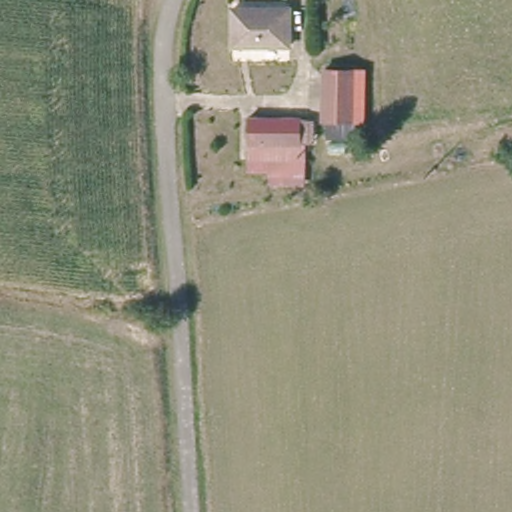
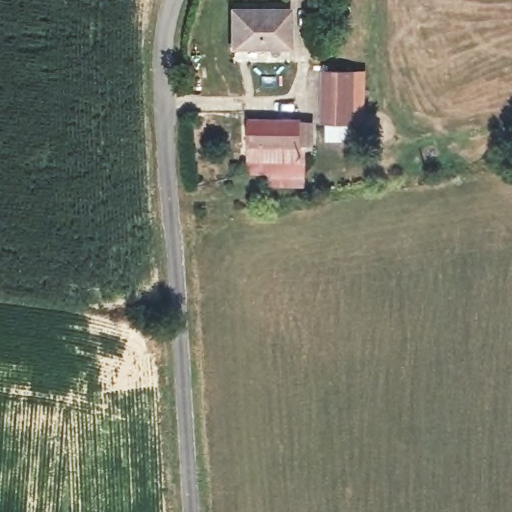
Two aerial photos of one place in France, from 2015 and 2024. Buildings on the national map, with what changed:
unchanged [(284,44),(227,45),(227,10),(283,8),(284,44)]
unchanged [(322,123),(326,66),(357,67),(355,121),(322,123)]
unchanged [(355,121),(357,67),(366,67),(362,125),(361,141),(326,139),(326,123),(355,121)]
unchanged [(253,153),(252,120),(293,120),(301,120),(302,154),(253,153)]
unchanged [(303,186),(267,186),(267,174),(254,174),(253,153),(302,154),(303,186)]

